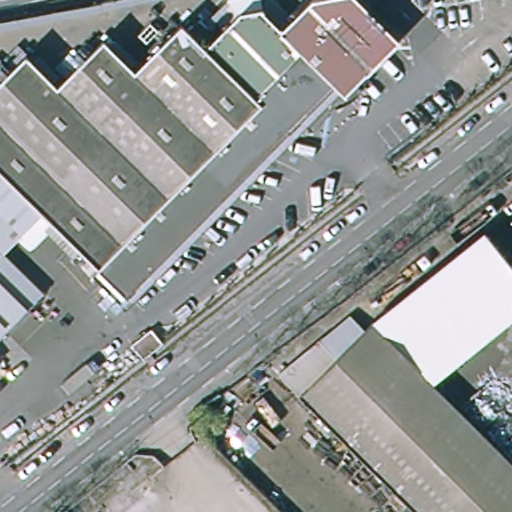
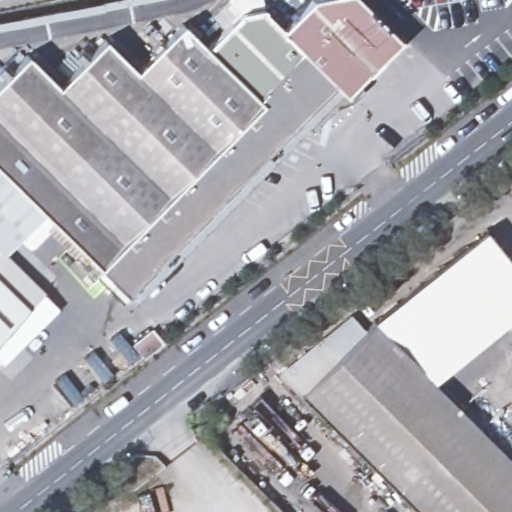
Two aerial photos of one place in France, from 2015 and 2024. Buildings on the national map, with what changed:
unchanged [(0,222),(0,72),(15,56),(50,87),(92,42),(125,72),(171,25),(195,47),(226,14),(257,8),(278,27),(304,0),(359,0),(402,43),(347,96),(333,82),(123,296),(37,217),(17,239),(0,222)]
unchanged [(0,256),(0,222),(17,239),(0,256)]
unchanged [(482,235),(512,274),(512,299),(510,300),(468,245),(482,235)]
unchanged [(468,245),(510,300),(462,338),(474,355),(433,386),(368,323),(468,245)]
unchanged [(27,311),(0,337),(0,284),(27,311)]
unchanged [(274,372),(345,315),(361,330),(368,323),(433,386),(512,465),(512,512),(415,512),(342,439),(274,372)]
unchanged [(149,358),(138,345),(156,331),(166,345),(149,358)]
unchanged [(186,416),(202,403),(213,418),(200,429),(186,416)]

